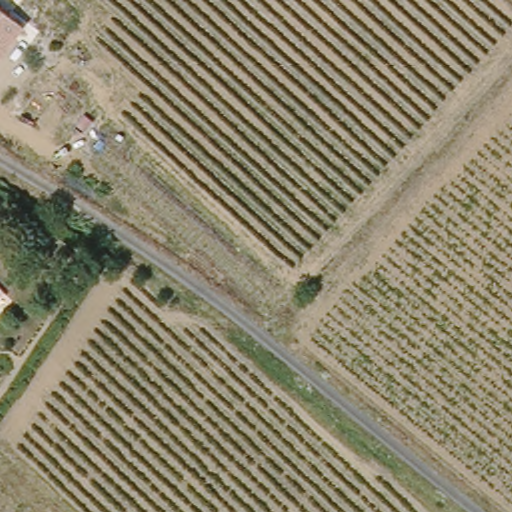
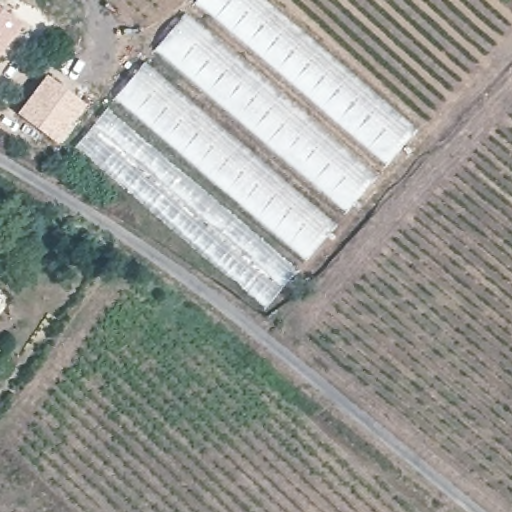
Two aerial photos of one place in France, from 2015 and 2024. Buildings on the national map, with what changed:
new [(196,2),(198,0),(264,0),(417,130),(387,165),(196,2)]
unchanged [(25,31),(0,63),(0,13),(25,31)]
new [(345,214),(154,51),(185,15),(376,178),(345,214)]
new [(306,262),(114,99),(144,64),(335,227),(306,262)]
new [(46,74),(87,105),(58,144),(17,113),(46,74)]
new [(266,308),(75,147),(107,110),(298,270),(266,308)]

